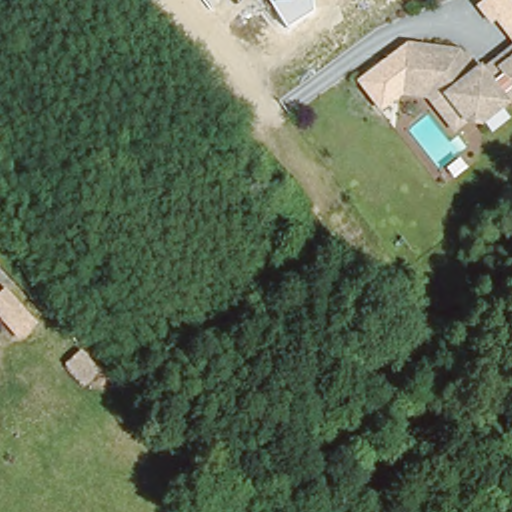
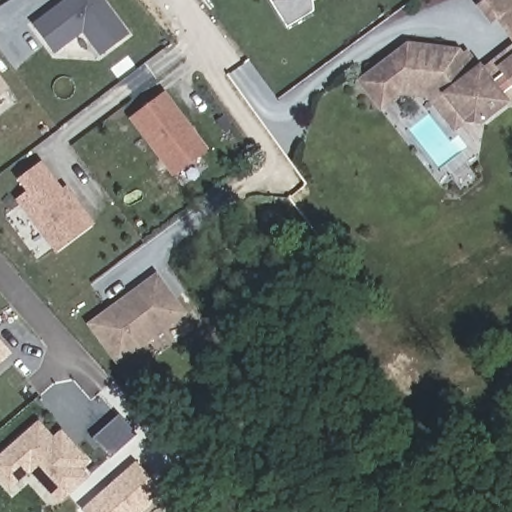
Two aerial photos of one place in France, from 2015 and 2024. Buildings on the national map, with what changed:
new [(81,32),(52,55),(31,25),(63,0),(104,0),(129,34),(99,57),(81,32)]
unchanged [(288,27),(270,1),(273,0),(315,0),(316,9),(288,27)]
unchanged [(491,24),(476,4),(480,0),(512,0),(512,44),(494,21),(491,24)]
unchanged [(409,51),(403,91),(377,111),(355,79),(411,41),(409,51)]
unchanged [(512,47),(512,97),(482,120),(467,117),(452,98),(403,91),(411,41),(467,50),(469,53),(472,50),(487,67),(487,66),(492,63),(512,47)]
new [(0,94),(0,77),(8,88),(0,94)]
unchanged [(452,98),(467,117),(457,126),(447,115),(401,108),(403,91),(452,98)]
new [(172,175),(132,119),(164,94),(206,149),(172,175)]
new [(95,224),(54,253),(15,200),(25,193),(15,180),(42,161),(61,189),(66,186),(95,224)]
new [(117,360),(92,325),(156,279),(182,314),(117,360)]
demolished [(3,288),(30,319),(16,332),(0,313),(0,291),(3,288)]
new [(12,355),(0,365),(0,341),(12,355)]
new [(119,412),(137,433),(109,457),(92,437),(119,412)]
new [(62,429),(91,461),(84,470),(91,476),(58,508),(27,474),(8,492),(0,483),(0,453),(37,420),(52,436),(62,429)]
new [(144,512),(82,512),(80,510),(134,462),(164,495),(144,512)]

